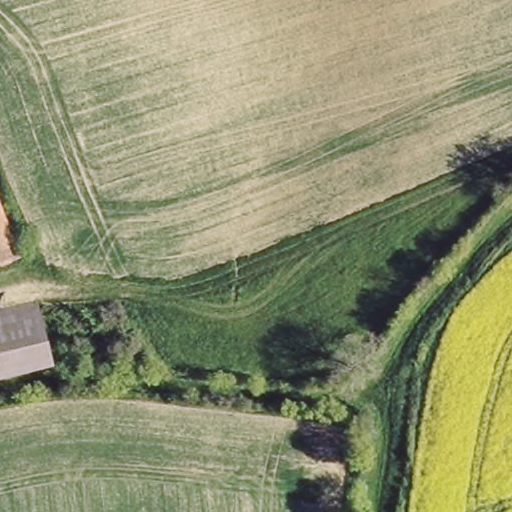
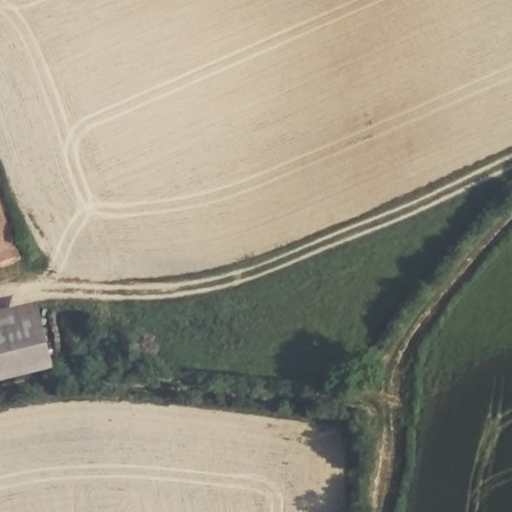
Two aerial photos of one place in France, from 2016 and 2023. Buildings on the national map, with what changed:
unchanged [(12,268),(0,272),(0,229),(12,268)]
unchanged [(36,308),(47,368),(0,377),(0,315),(36,308)]

